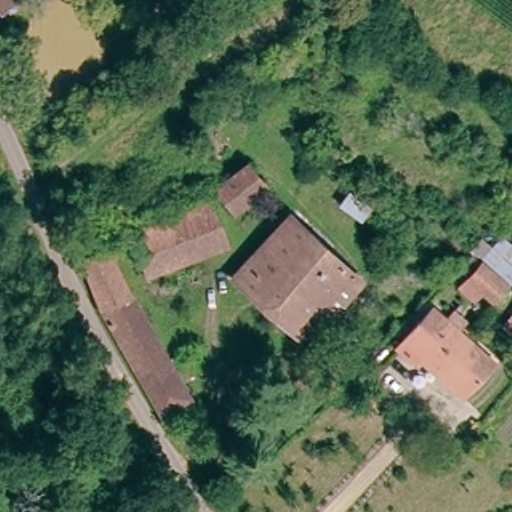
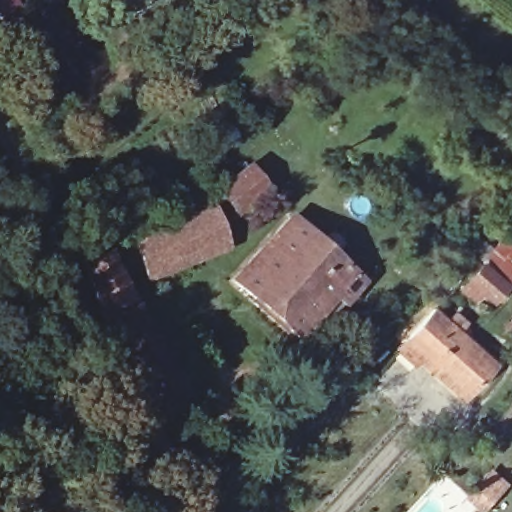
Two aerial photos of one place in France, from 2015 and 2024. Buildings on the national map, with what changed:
unchanged [(0,0),(12,0),(17,11),(0,19),(0,0)]
unchanged [(234,216),(212,191),(246,161),(268,189),(234,216)]
unchanged [(185,245),(140,261),(128,230),(210,204),(218,233),(185,245)]
unchanged [(349,263),(291,330),(230,277),(286,214),(349,263)]
unchanged [(192,266),(148,281),(140,261),(185,245),(218,233),(226,255),(192,266)]
unchanged [(512,255),(512,281),(494,304),(482,294),(470,303),(454,287),(496,233),(512,244),(512,254),(512,255)]
unchanged [(96,245),(185,407),(161,422),(103,331),(76,251),(96,245)]
unchanged [(496,327),(512,306),(512,341),(496,327)]
unchanged [(436,381),(424,372),(430,365),(401,338),(426,309),(467,346),(436,381)]
unchanged [(335,336),(350,323),(361,337),(347,350),(335,336)]
unchanged [(462,402),(436,381),(467,346),(491,367),(462,402)]

